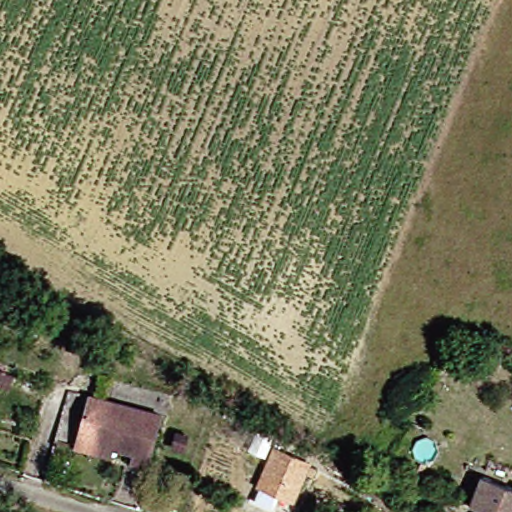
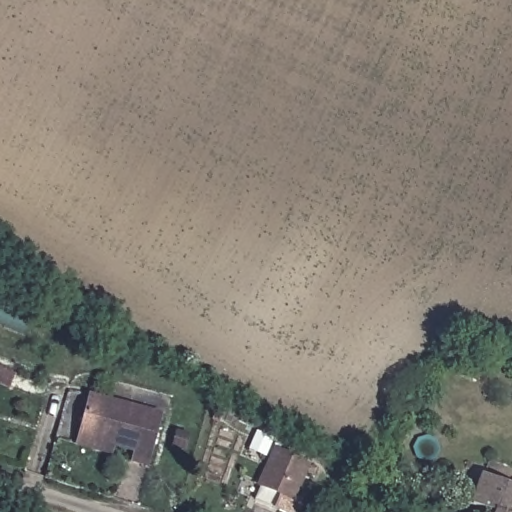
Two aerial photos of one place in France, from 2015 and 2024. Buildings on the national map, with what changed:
unchanged [(22,372),(14,385),(0,380),(0,363),(22,372)]
unchanged [(101,390),(170,412),(156,462),(142,460),(144,446),(128,442),(123,454),(84,439),(88,428),(101,390)]
unchanged [(283,451),(321,467),(307,503),(269,485),(283,451)]
unchanged [(484,476),(504,483),(512,486),(512,512),(475,512),(471,511),(474,502),(484,476)]

